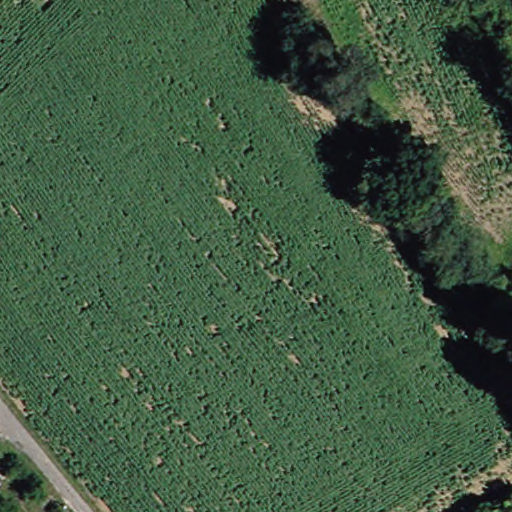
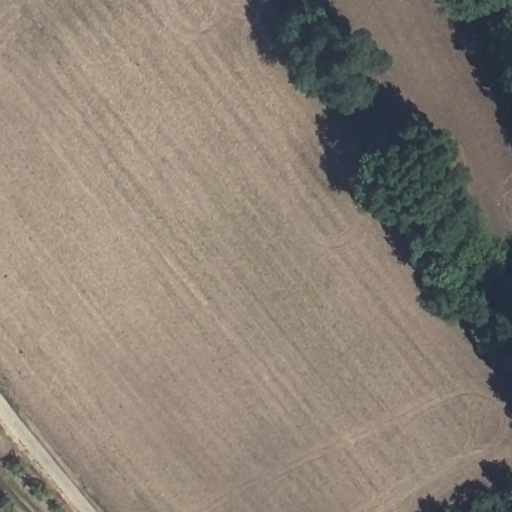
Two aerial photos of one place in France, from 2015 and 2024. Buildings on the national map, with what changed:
[]

